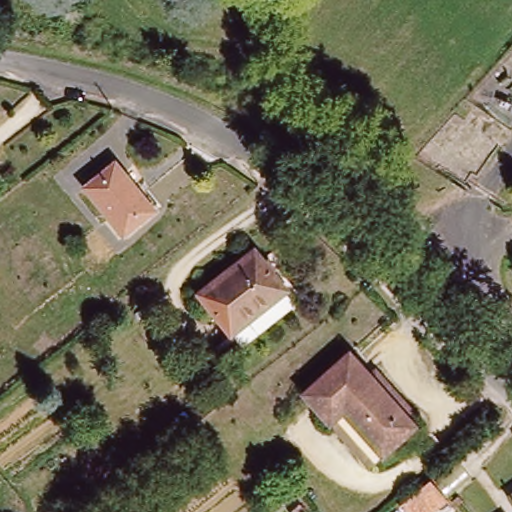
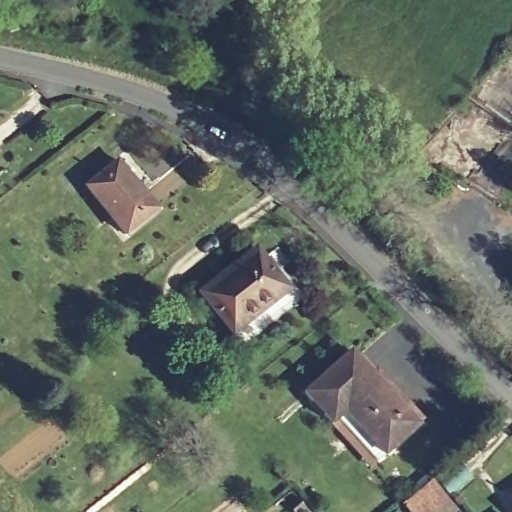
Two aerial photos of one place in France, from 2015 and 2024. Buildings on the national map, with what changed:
unchanged [(82,185),(113,161),(151,210),(120,233),(82,185)]
unchanged [(287,286),(230,338),(184,288),(230,246),(240,256),(251,246),(287,286)]
unchanged [(325,419),(318,423),(292,391),(345,349),(364,372),(372,365),(420,420),(412,427),(366,464),(325,419)]
unchanged [(430,485),(448,505),(441,512),(411,512),(406,506),(430,485)]
unchanged [(506,491),(512,487),(512,500),(506,491)]

